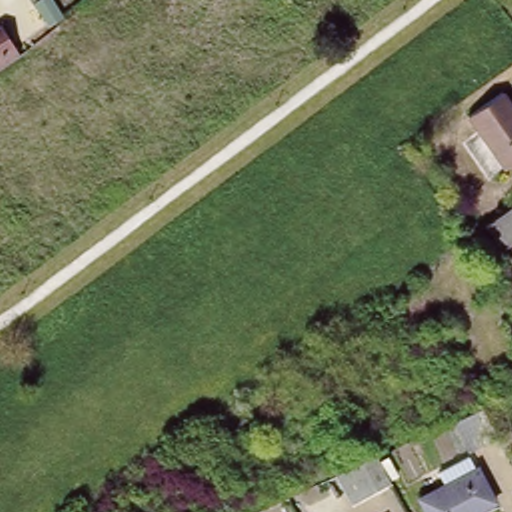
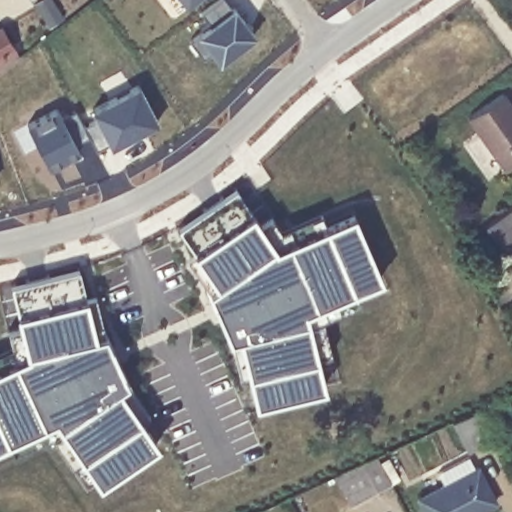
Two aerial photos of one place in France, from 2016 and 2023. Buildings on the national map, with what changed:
demolished [(78,1),(58,11),(62,21),(44,33),(26,0),(77,0),(78,1)]
new [(186,1),(185,0),(188,0),(186,1)]
unchanged [(0,29),(18,59),(0,72),(0,29)]
unchanged [(512,108),(512,169),(505,174),(469,120),(504,96),(512,108)]
new [(306,310),(324,387),(256,403),(248,373),(239,376),(231,342),(206,291),(188,255),(193,249),(178,225),(236,185),(253,209),(260,220),(272,214),(281,229),(321,211),(324,222),(354,211),(381,276),(306,310)]
unchanged [(512,211),(512,247),(504,253),(487,228),(512,211)]
new [(83,457),(70,465),(48,437),(12,451),(7,440),(0,443),(0,349),(11,344),(6,327),(18,323),(15,311),(9,282),(78,268),(84,295),(95,293),(103,333),(124,379),(146,410),(138,412),(158,442),(99,483),(83,457)]
unchanged [(481,411),(495,439),(466,453),(452,424),(481,411)]
unchanged [(366,463),(373,462),(384,484),(345,505),(331,479),(366,463)]
unchanged [(472,512),(420,512),(414,501),(472,471),(489,503),(472,512)]

